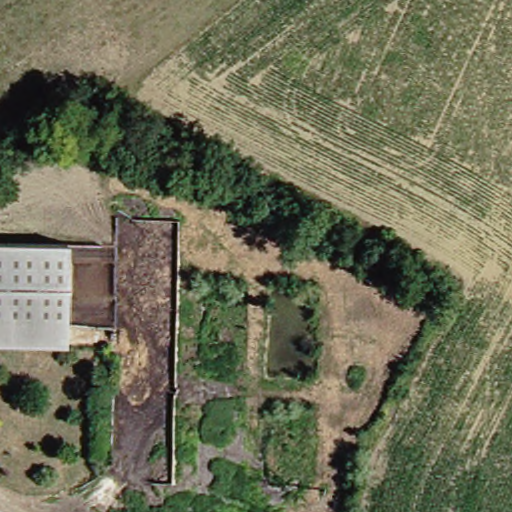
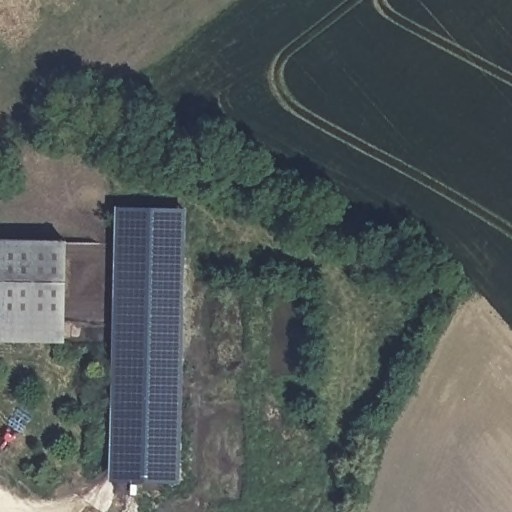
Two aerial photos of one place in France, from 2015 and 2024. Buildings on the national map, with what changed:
new [(115,207),(186,209),(179,483),(109,482),(115,207)]
unchanged [(56,348),(0,348),(0,243),(56,243),(56,348)]

